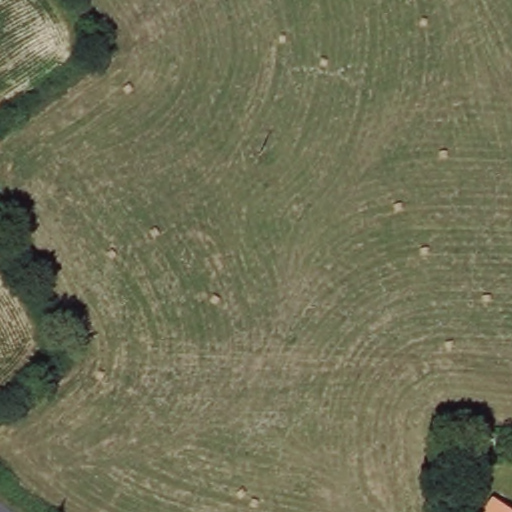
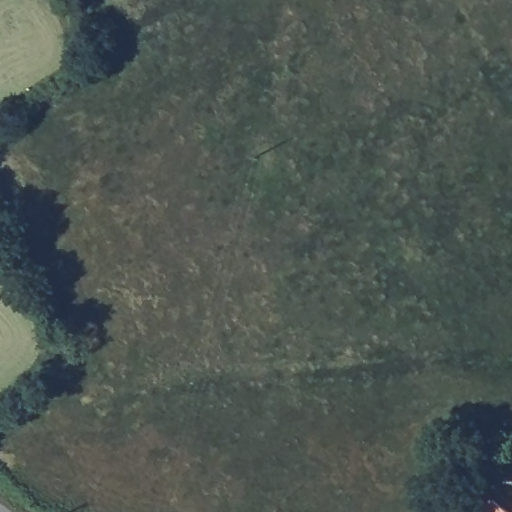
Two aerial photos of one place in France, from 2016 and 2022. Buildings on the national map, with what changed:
unchanged [(497,495),(512,510),(512,512),(480,512),(497,495)]

